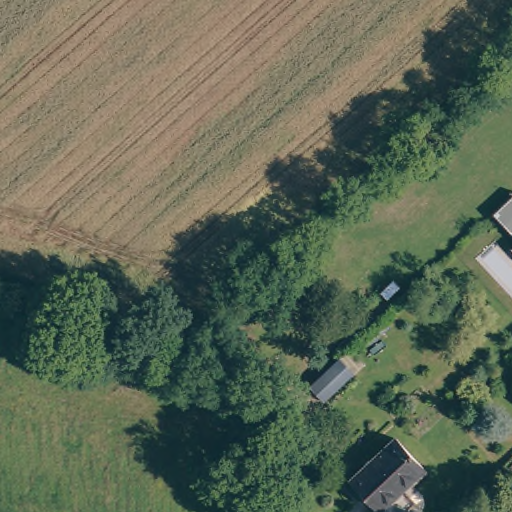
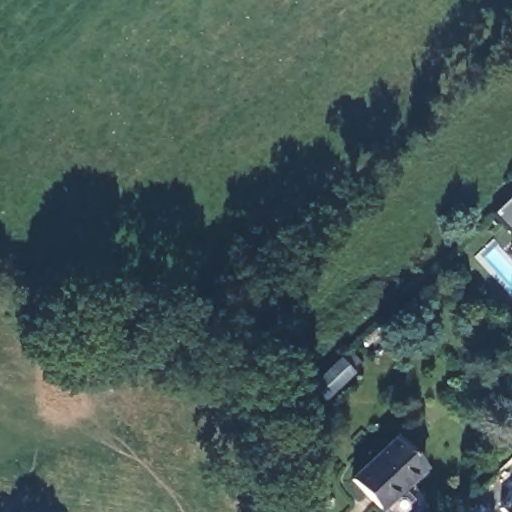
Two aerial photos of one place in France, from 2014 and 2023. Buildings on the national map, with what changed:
unchanged [(512,236),(493,216),(512,196),(512,236)]
unchanged [(512,253),(511,252),(512,251),(512,253)]
unchanged [(323,405),(311,390),(339,363),(353,378),(346,385),(323,405)]
unchanged [(380,511),(352,481),(396,440),(425,470),(380,511)]
unchanged [(512,467),(512,470),(511,469),(512,467)]

